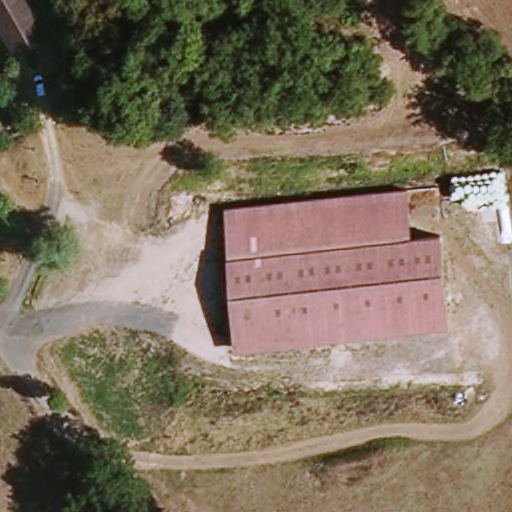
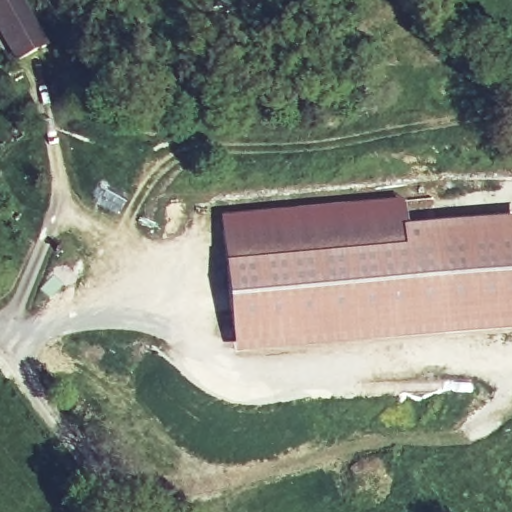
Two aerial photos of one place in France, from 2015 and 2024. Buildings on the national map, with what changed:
unchanged [(0,14),(0,0),(4,0),(9,7),(0,14)]
unchanged [(0,14),(9,7),(4,0),(40,0),(57,30),(20,50),(0,22),(0,14)]
unchanged [(225,270),(220,222),(401,201),(407,250),(225,270)]
new [(447,336),(437,247),(407,250),(404,227),(512,218),(512,330),(447,336)]
unchanged [(447,336),(235,360),(225,270),(407,250),(437,247),(447,336)]

